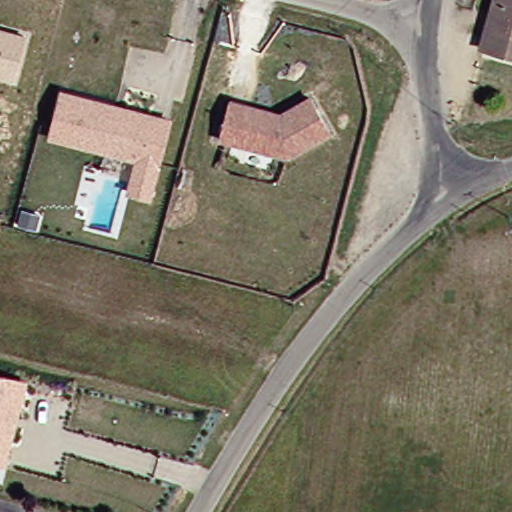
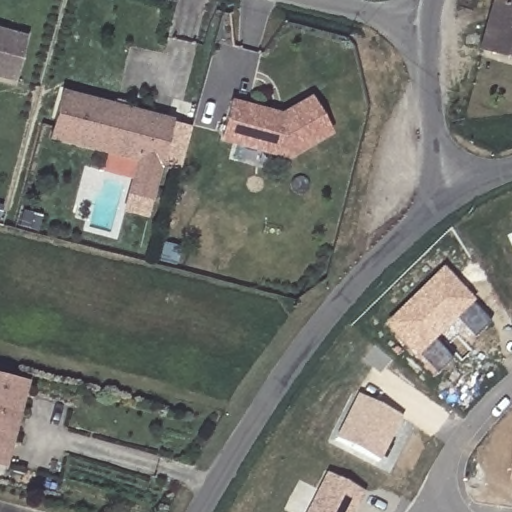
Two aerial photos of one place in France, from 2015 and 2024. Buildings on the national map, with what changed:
unchanged [(479,44),(490,0),(512,0),(512,52),(479,44)]
unchanged [(13,77),(0,74),(0,28),(24,34),(13,77)]
unchanged [(60,96),(62,91),(169,119),(167,125),(154,175),(148,196),(129,191),(131,182),(132,177),(136,163),(138,158),(103,149),(50,135),(60,96)]
unchanged [(280,117),(309,100),(329,134),(286,159),(220,141),(230,102),(280,117)]
new [(509,237),(512,236),(512,244),(509,237)]
new [(473,340),(454,322),(433,342),(451,362),(434,377),(416,358),(414,361),(382,326),(440,268),(473,304),(470,307),(487,325),(473,340)]
unchanged [(1,463),(0,463),(0,378),(22,385),(1,463)]
new [(378,462),(333,440),(354,397),(399,419),(378,462)]
new [(506,483),(512,437),(512,484),(506,483)]
new [(306,512),(324,475),(363,496),(355,512),(306,512)]

